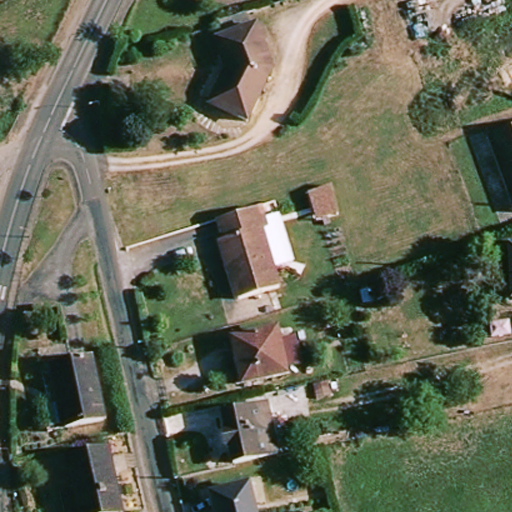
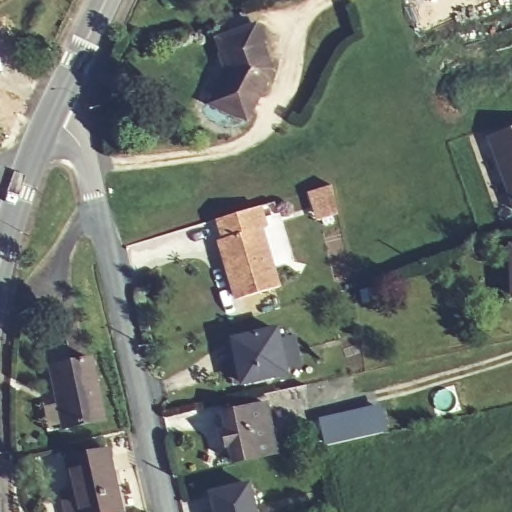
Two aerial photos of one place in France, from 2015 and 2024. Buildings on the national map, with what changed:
unchanged [(247,126),(211,110),(227,75),(221,58),(226,56),(221,42),(216,29),(245,19),(250,33),(256,31),(272,76),(247,126)]
unchanged [(495,132),(512,125),(512,179),(495,132)]
new [(332,185),(337,210),(317,215),(310,192),(332,185)]
unchanged [(279,287),(238,300),(230,264),(225,265),(218,241),(223,240),(217,220),(260,207),(267,228),(262,230),(279,287)]
unchanged [(509,297),(507,247),(512,247),(512,297),(509,297)]
unchanged [(286,375),(242,383),(232,340),(277,330),(286,375)]
unchanged [(99,425),(60,434),(46,372),(86,364),(99,425)]
unchanged [(277,453),(233,463),(230,447),(227,447),(223,430),(226,430),(222,414),(267,405),(277,453)]
new [(325,445),(318,420),(380,405),(387,429),(325,445)]
unchanged [(122,512),(66,512),(62,492),(73,490),(67,459),(108,449),(122,512)]
unchanged [(254,512),(215,512),(211,493),(248,485),(254,512)]

